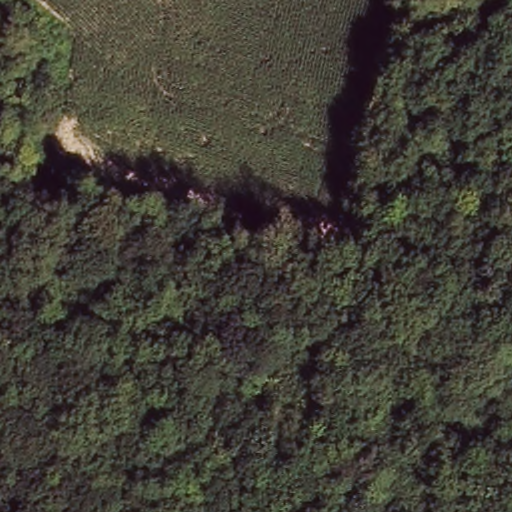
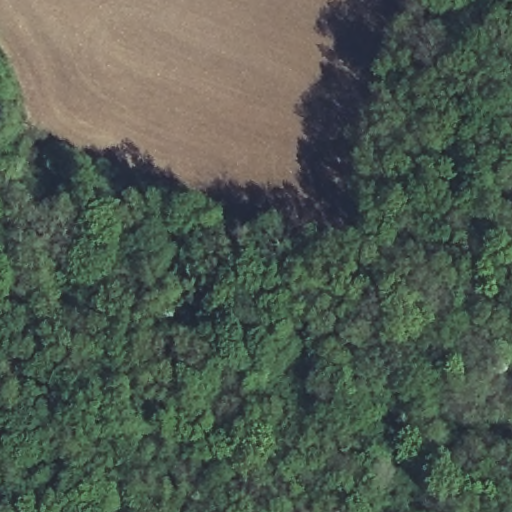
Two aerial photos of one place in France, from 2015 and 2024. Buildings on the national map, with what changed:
[]

